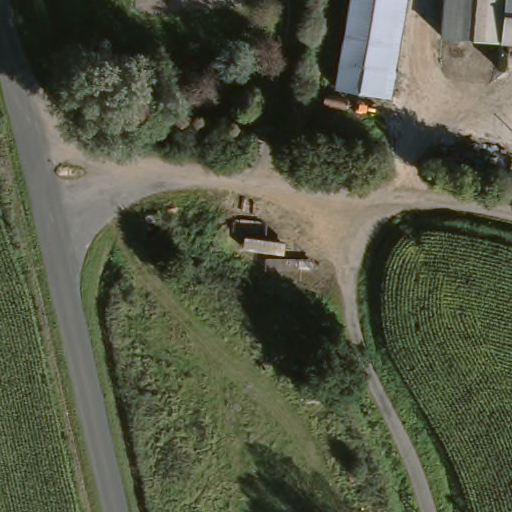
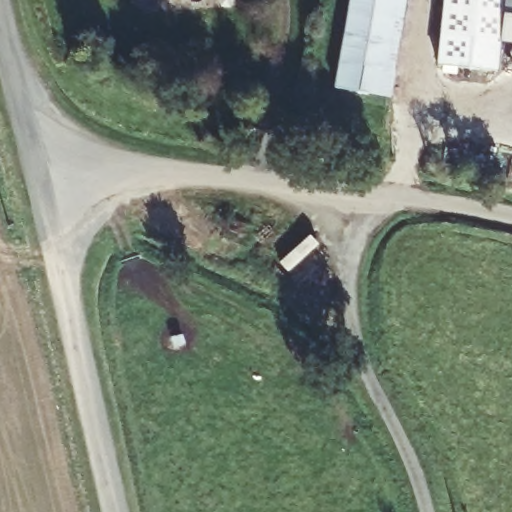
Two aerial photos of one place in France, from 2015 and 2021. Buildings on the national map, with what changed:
unchanged [(390,98),(338,87),(353,0),(407,0),(390,98)]
unchanged [(445,42),(448,0),(508,0),(505,47),(445,42)]
unchanged [(512,47),(505,47),(508,0),(512,0),(512,47)]

